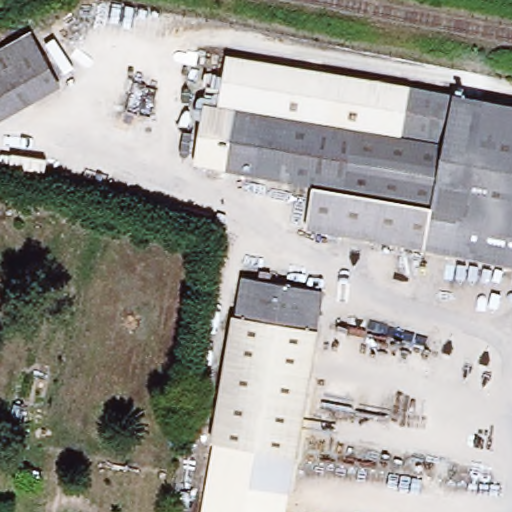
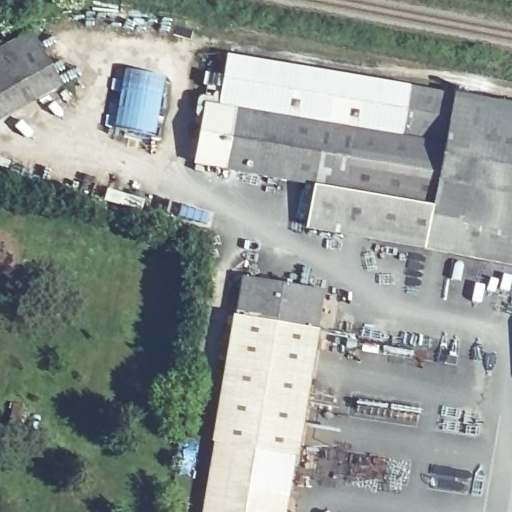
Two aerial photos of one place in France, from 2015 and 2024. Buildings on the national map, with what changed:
unchanged [(0,51),(30,34),(60,87),(0,120),(0,51)]
unchanged [(512,106),(512,266),(307,226),(314,183),(194,164),(204,104),(218,107),(227,56),(408,86),(512,106)]
new [(123,67),(168,77),(156,137),(110,126),(123,67)]
new [(106,187),(142,198),(139,211),(102,201),(106,187)]
unchanged [(293,456),(215,443),(236,318),(238,319),(245,278),(321,291),(293,456)]
unchanged [(284,512),(203,512),(209,478),(198,476),(204,443),(214,445),(215,443),(293,456),(284,512)]

